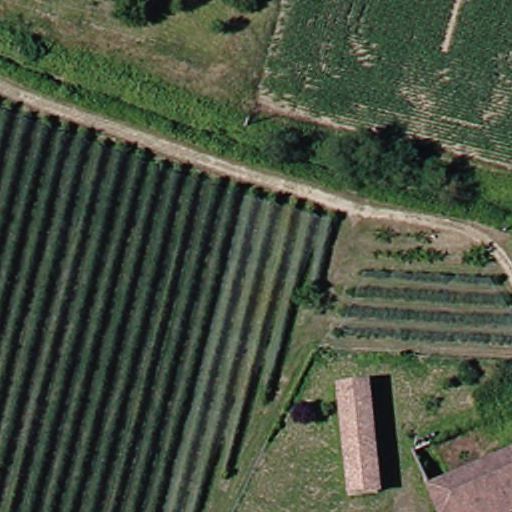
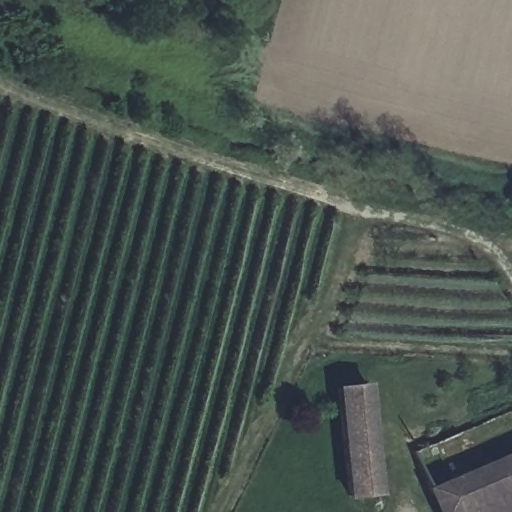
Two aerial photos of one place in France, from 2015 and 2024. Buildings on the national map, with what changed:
unchanged [(370,385),(383,493),(352,497),(340,387),(370,385)]
unchanged [(512,410),(512,512),(441,512),(416,451),(512,410)]

